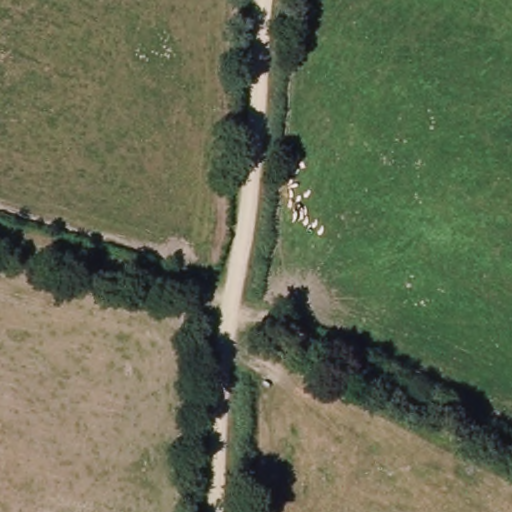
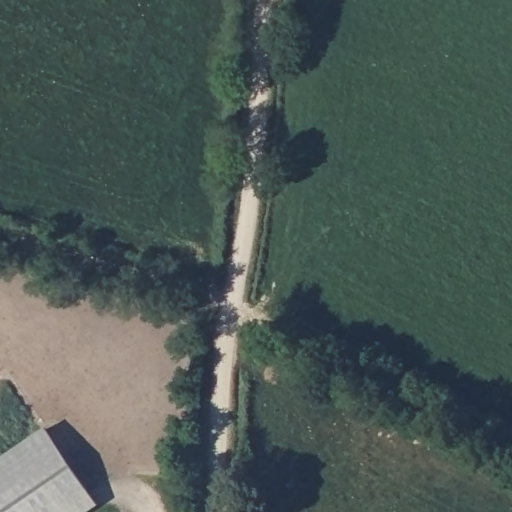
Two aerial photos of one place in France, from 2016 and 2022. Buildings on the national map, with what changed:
new [(46,427),(101,506),(91,512),(0,512),(0,459),(46,427)]

